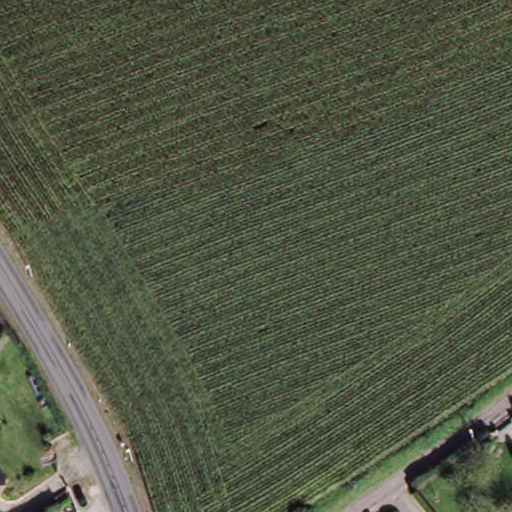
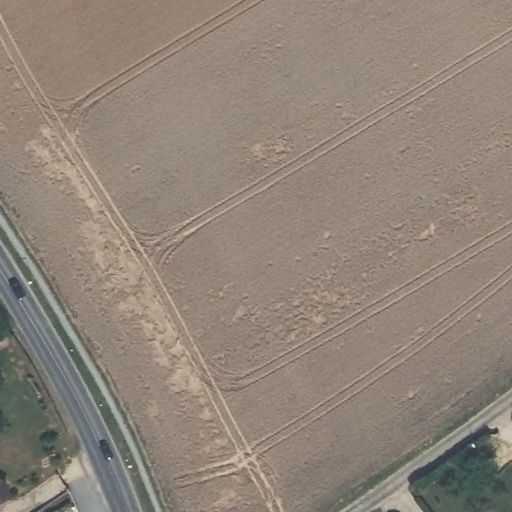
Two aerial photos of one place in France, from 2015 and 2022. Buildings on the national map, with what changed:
[]

